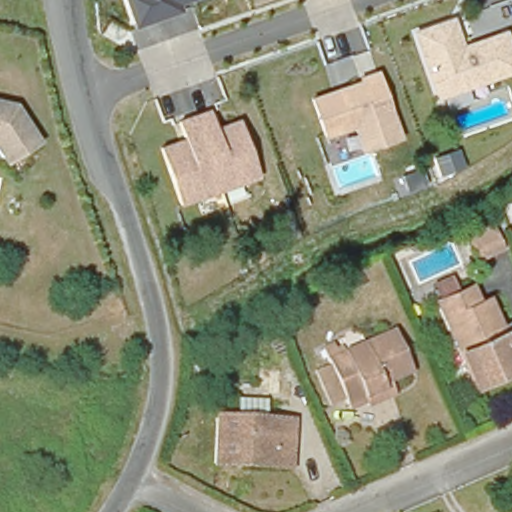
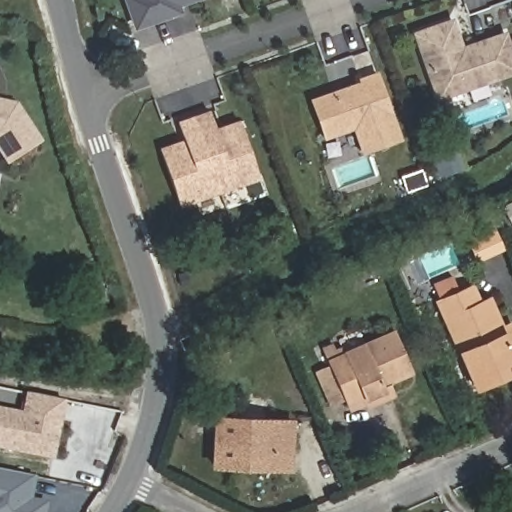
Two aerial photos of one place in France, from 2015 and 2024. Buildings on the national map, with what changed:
unchanged [(182,11),(135,28),(126,0),(193,0),(180,5),(182,11)]
unchanged [(512,72),(437,98),(415,33),(451,21),(463,53),(475,49),(473,44),(504,33),(512,56),(512,72)]
unchanged [(398,136),(362,149),(354,123),(324,133),(312,95),(329,90),(333,93),(340,91),(339,86),(357,81),(356,77),(377,70),(398,136)]
unchanged [(17,101),(43,142),(6,166),(0,156),(0,97),(17,101)]
unchanged [(238,118),(256,176),(177,205),(158,145),(180,136),(177,119),(209,109),(215,126),(238,118)]
new [(454,153),(460,171),(435,179),(430,160),(454,153)]
unchanged [(496,244),(472,253),(465,239),(490,228),(496,244)]
unchanged [(512,372),(471,389),(435,303),(470,289),(475,303),(483,300),(497,332),(506,328),(512,343),(512,372)]
unchanged [(378,404),(375,398),(358,405),(337,357),(404,327),(420,364),(393,377),(397,388),(399,394),(378,404)]
new [(65,402),(53,460),(0,449),(0,407),(21,412),(25,391),(65,402)]
unchanged [(291,474),(210,467),(213,415),(299,422),(291,474)]
new [(36,477),(32,498),(48,502),(46,512),(0,512),(0,470),(36,477)]

